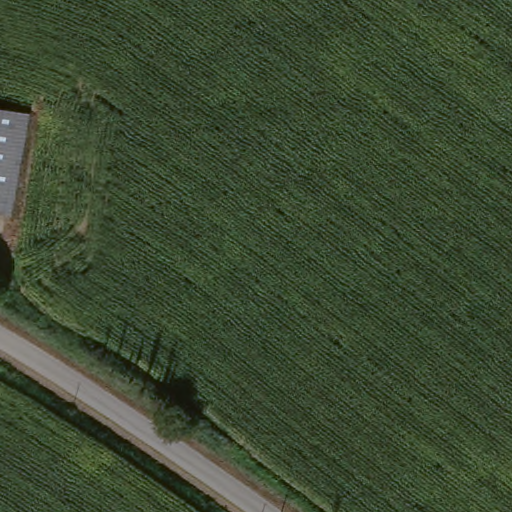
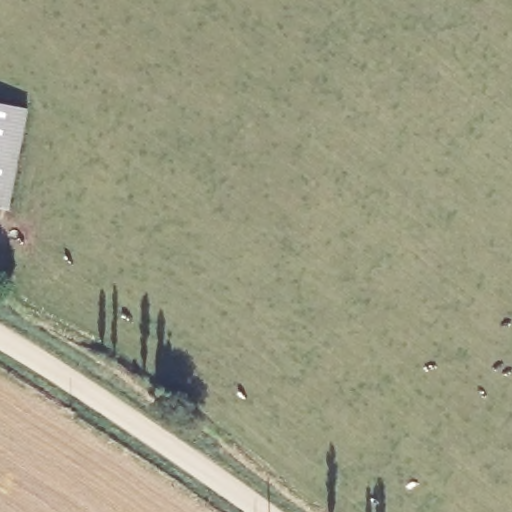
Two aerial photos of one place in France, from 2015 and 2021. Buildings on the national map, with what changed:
unchanged [(11,217),(0,215),(0,110),(21,113),(11,217)]

